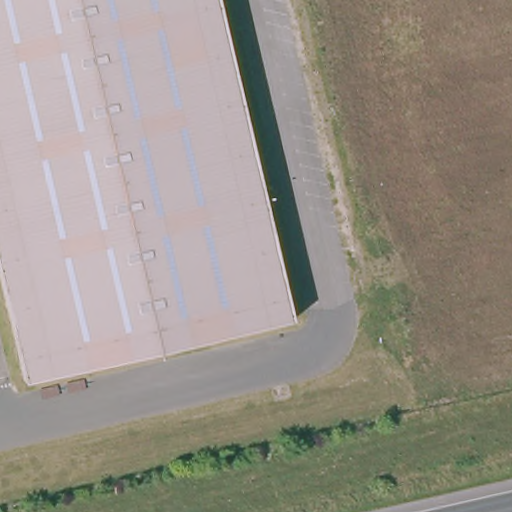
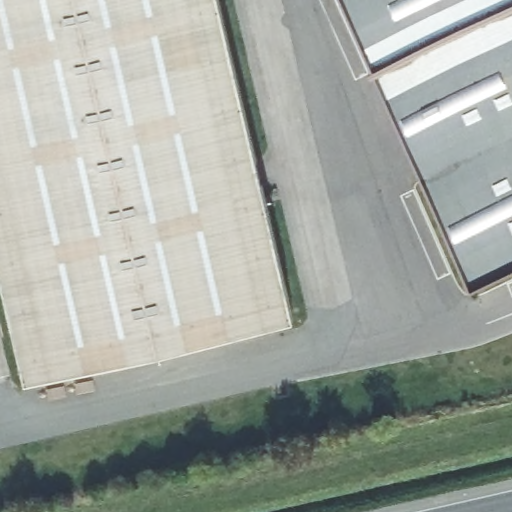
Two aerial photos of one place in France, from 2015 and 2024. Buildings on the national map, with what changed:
unchanged [(291,308),(295,325),(270,331),(200,345),(26,380),(0,269),(0,0),(217,0),(291,308)]
new [(471,286),(343,0),(512,0),(512,267),(471,286)]

